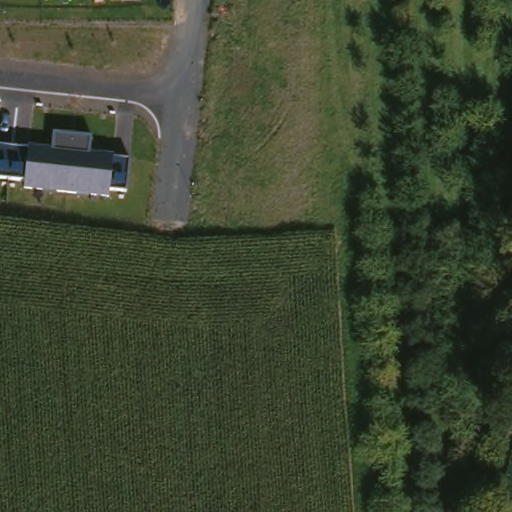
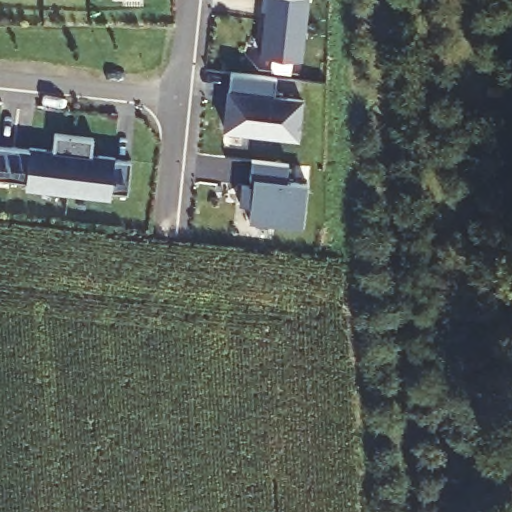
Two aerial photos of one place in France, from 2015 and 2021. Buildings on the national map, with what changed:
new [(290,55),(289,69),(271,66),(270,53),(260,51),(264,0),(307,0),(302,55),(290,55)]
new [(227,69),(275,74),(272,94),(301,97),(297,135),(221,127),(227,69)]
unchanged [(92,138),(90,155),(129,161),(126,192),(110,190),(110,198),(24,188),(25,181),(0,179),(0,144),(53,150),(54,134),(92,138)]
new [(237,183),(249,184),(250,177),(246,176),(248,158),(286,161),(285,179),(306,182),(302,226),(245,220),(247,204),(235,203),(237,183)]

